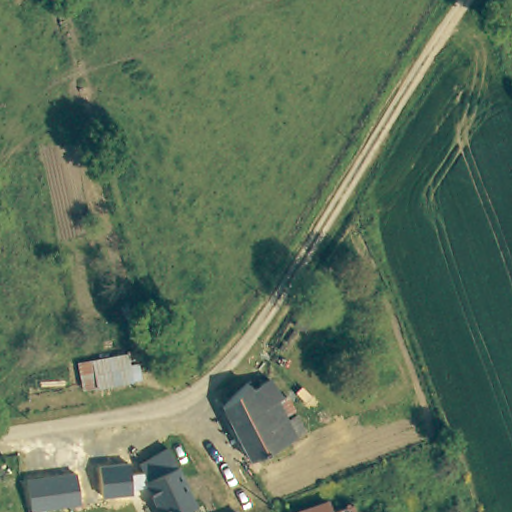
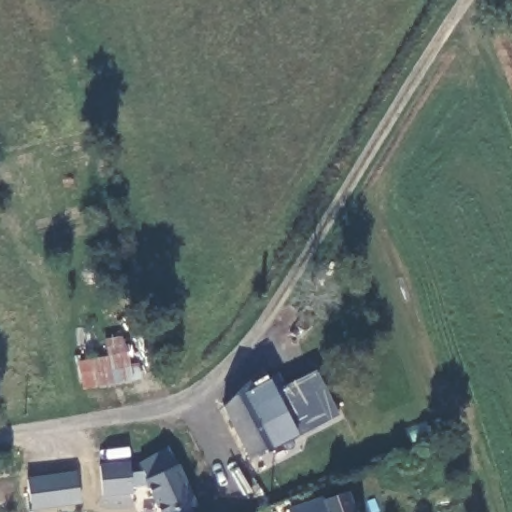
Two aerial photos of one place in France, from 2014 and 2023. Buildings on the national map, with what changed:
unchanged [(139,349),(145,377),(85,388),(79,360),(139,349)]
unchanged [(255,383),(274,372),(295,407),(287,411),(298,434),(252,457),(227,401),(252,377),(255,383)]
new [(287,411),(295,407),(285,392),(318,376),(337,418),(298,434),(287,411)]
unchanged [(199,503),(190,506),(193,512),(163,512),(139,458),(172,444),(199,503)]
unchanged [(75,472),(80,506),(30,512),(25,480),(75,472)]
unchanged [(336,512),(295,512),(332,501),(336,512)]

